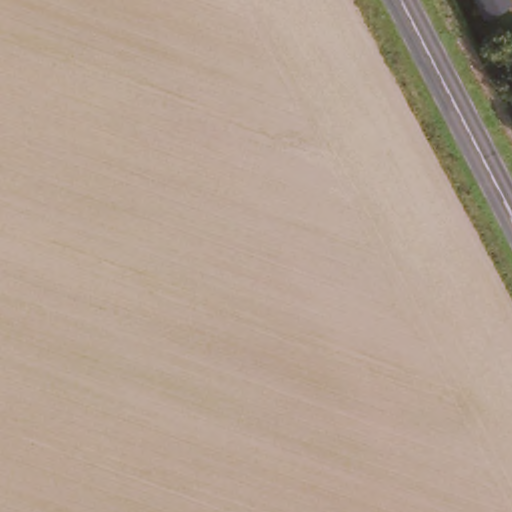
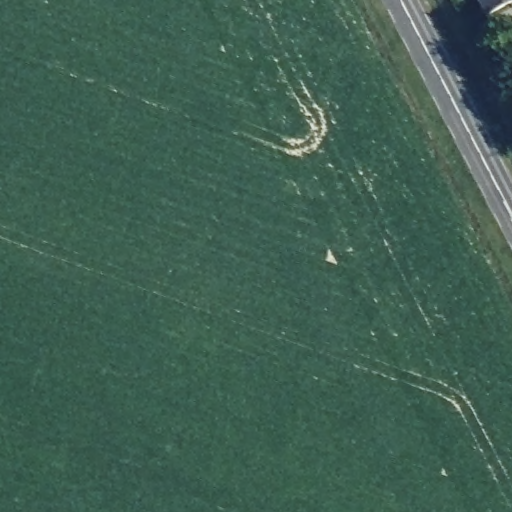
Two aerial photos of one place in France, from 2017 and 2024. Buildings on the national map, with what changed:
unchanged [(485,16),(476,0),(512,0),(512,1),(485,16)]

